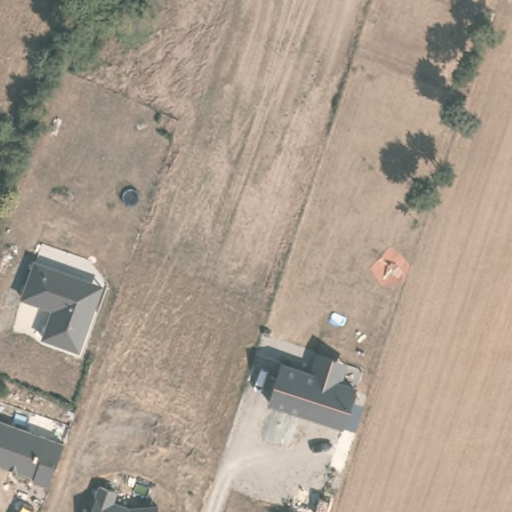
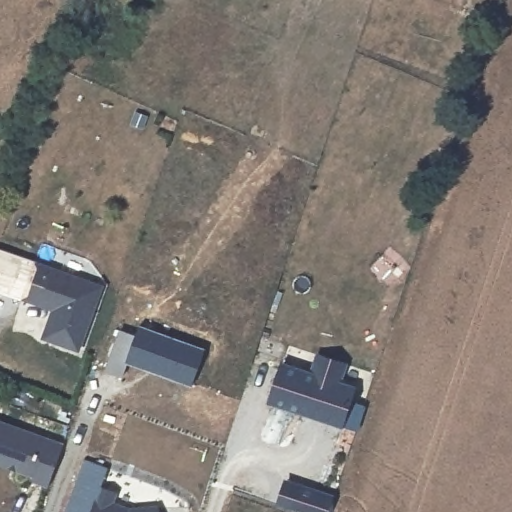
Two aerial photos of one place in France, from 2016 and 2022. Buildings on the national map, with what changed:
unchanged [(106,285),(82,354),(41,336),(51,312),(20,298),(34,262),(106,285)]
new [(194,387),(128,362),(122,380),(103,372),(117,330),(132,334),(136,325),(206,349),(194,387)]
unchanged [(267,404),(284,363),(307,371),(312,353),(347,362),(343,383),(356,387),(342,428),(267,404)]
unchanged [(51,486),(32,483),(34,477),(0,466),(0,422),(66,440),(51,486)]
unchanged [(101,487),(117,495),(115,502),(130,508),(157,506),(157,512),(92,512),(101,487)]

